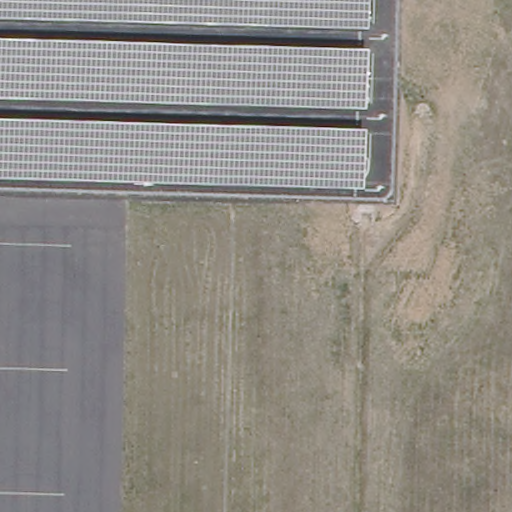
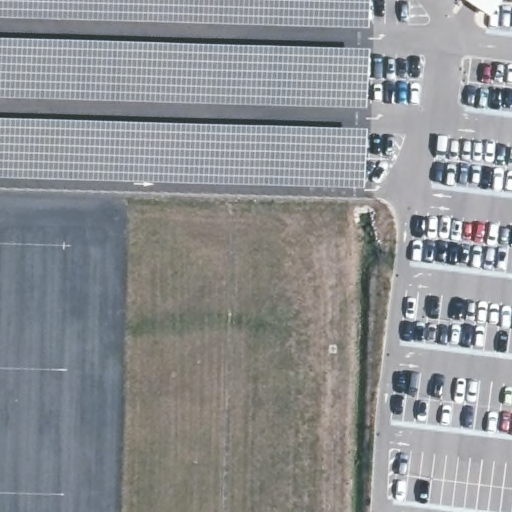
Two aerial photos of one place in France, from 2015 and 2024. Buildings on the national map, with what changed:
[]

